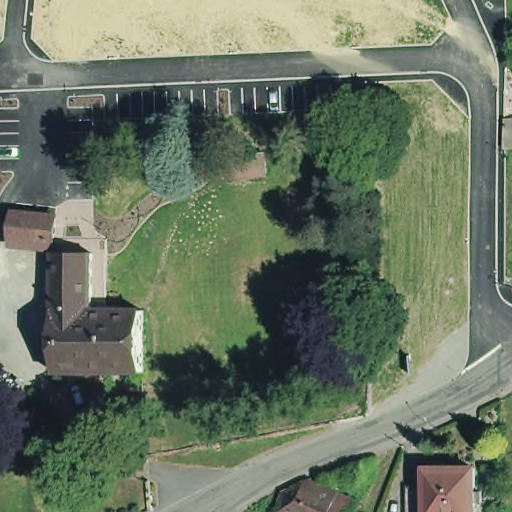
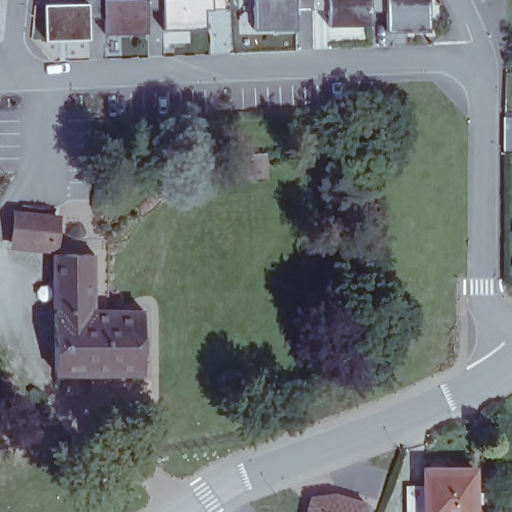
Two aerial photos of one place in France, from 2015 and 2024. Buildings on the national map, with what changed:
new [(45,4),(85,3),(85,0),(163,0),(163,8),(148,9),(148,32),(105,33),(105,16),(90,17),(90,38),(46,39),(45,4)]
new [(212,8),(205,8),(205,28),(164,30),(163,8),(163,0),(229,0),(230,7),(212,8)]
new [(252,0),(295,0),(295,28),(253,29),(252,0)]
new [(329,25),(329,9),(313,9),(313,0),(372,0),(372,24),(329,25)]
new [(386,9),(372,9),(372,0),(430,0),(430,31),(386,32),(386,9)]
unchanged [(221,156),(266,154),(267,173),(222,175),(221,156)]
unchanged [(17,212),(58,217),(55,244),(15,240),(17,212)]
unchanged [(55,253),(95,253),(95,311),(145,310),(145,372),(55,372),(55,253)]
unchanged [(418,487),(436,487),(436,469),(439,468),(438,467),(442,463),(453,463),(457,467),(457,468),(485,468),(485,512),(418,512),(418,487)]
unchanged [(285,497),(308,489),(335,500),(336,498),(357,507),(355,512),(278,512),(285,497)]

